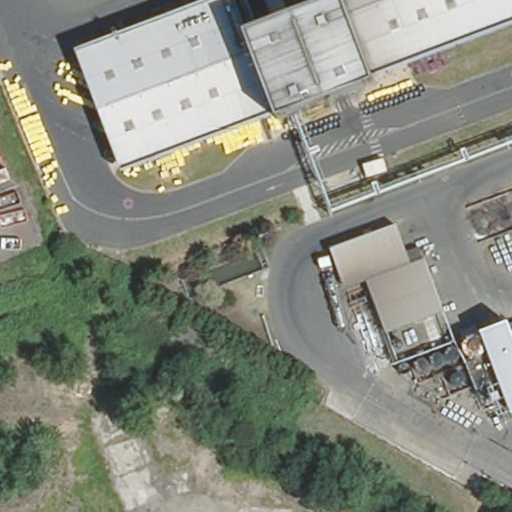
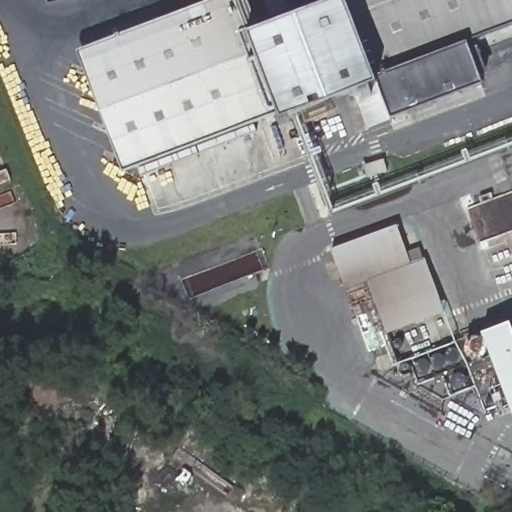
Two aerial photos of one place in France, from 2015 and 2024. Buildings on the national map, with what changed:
unchanged [(235,0),(247,29),(238,33),(272,111),(123,169),(119,159),(75,48),(197,0),(235,0)]
new [(182,0),(185,0),(182,1),(182,0)]
unchanged [(341,0),(368,68),(372,79),(274,118),(272,111),(238,33),(247,29),(322,0),(341,0)]
unchanged [(404,54),(368,68),(341,0),(512,0),(512,12),(404,54)]
new [(391,120),(376,76),(467,43),(482,84),(391,120)]
unchanged [(344,288),(330,249),(395,224),(409,264),(365,279),(344,288)]
unchanged [(409,264),(423,259),(442,313),(385,334),(365,279),(409,264)]
unchanged [(486,330),(512,321),(512,402),(486,330)]

